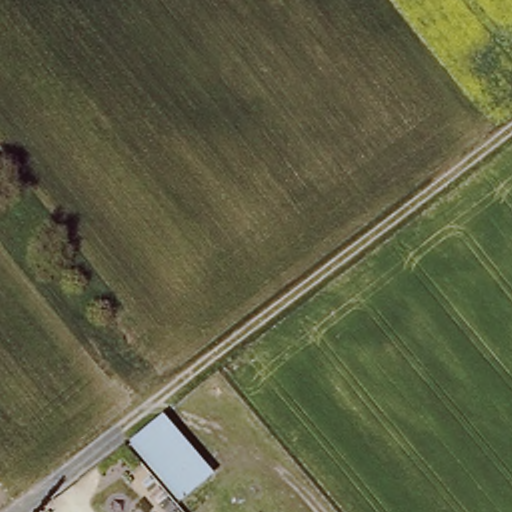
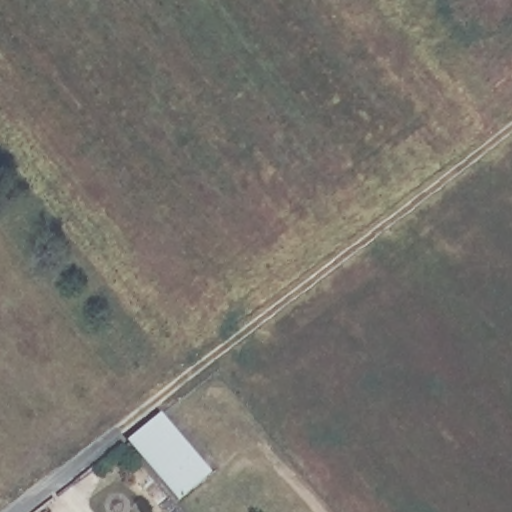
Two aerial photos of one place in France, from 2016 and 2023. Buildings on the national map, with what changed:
unchanged [(164,421),(215,480),(181,508),(130,448),(164,421)]

